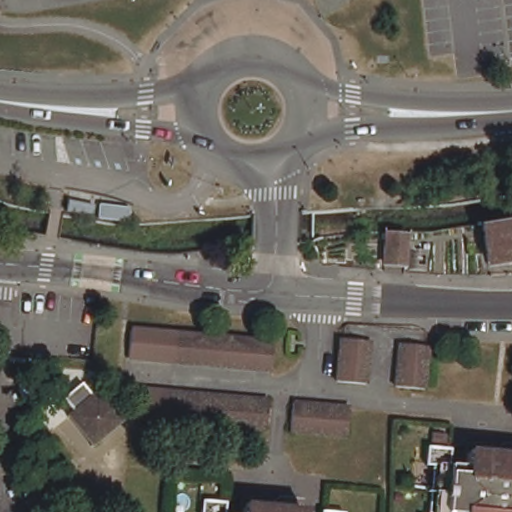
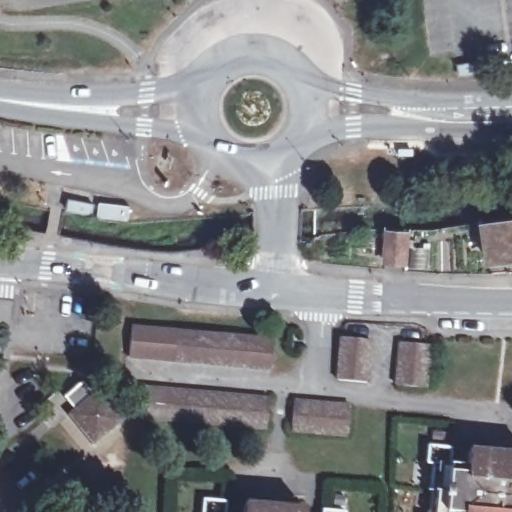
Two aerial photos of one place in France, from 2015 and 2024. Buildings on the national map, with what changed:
unchanged [(179,208),(180,216),(172,216),(172,209),(179,208)]
unchanged [(512,222),(512,257),(492,260),(486,226),(512,222)]
unchanged [(407,266),(387,264),(390,234),(410,236),(407,266)]
unchanged [(271,342),(269,371),(140,360),(142,331),(271,342)]
unchanged [(372,342),(369,384),(340,382),(344,339),(372,342)]
unchanged [(430,347),(427,389),(399,387),(402,344),(430,347)]
unchanged [(75,412),(65,399),(82,383),(93,396),(97,392),(124,422),(95,446),(70,416),(75,412)]
unchanged [(271,401),(269,429),(140,417),(143,389),(271,401)]
unchanged [(352,408),(350,436),(292,432),(295,403),(352,408)]
unchanged [(437,465),(429,464),(430,447),(452,450),(450,465),(469,467),(470,456),(474,451),(512,454),(512,512),(432,512),(437,465)]
unchanged [(206,501),(227,503),(226,512),(205,512),(206,501)]
unchanged [(245,510),(250,504),(302,510),(305,512),(244,512),(245,510)]

